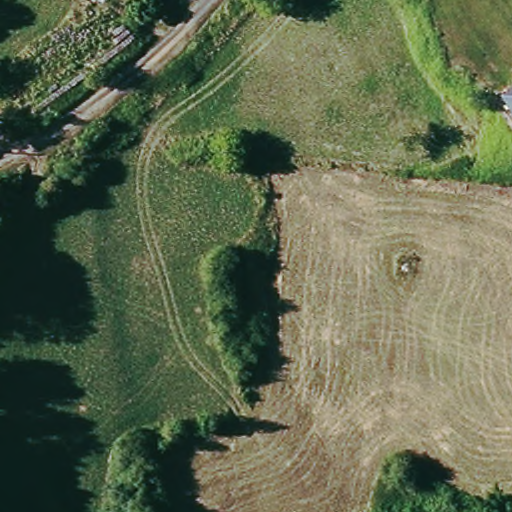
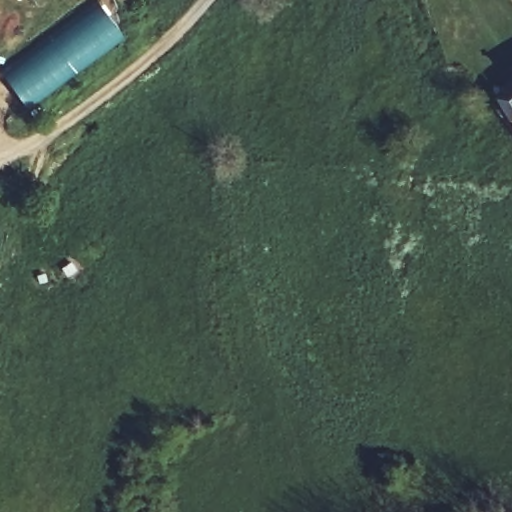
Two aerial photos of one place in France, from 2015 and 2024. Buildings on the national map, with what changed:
new [(118,27),(113,39),(114,45),(31,111),(9,72),(101,5),(106,13),(118,27)]
unchanged [(500,96),(512,88),(512,115),(500,96)]

